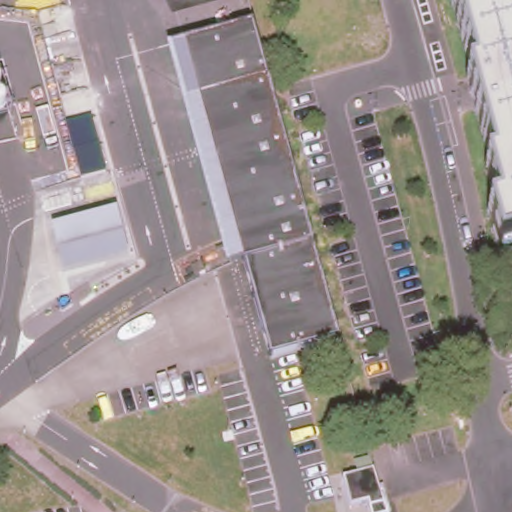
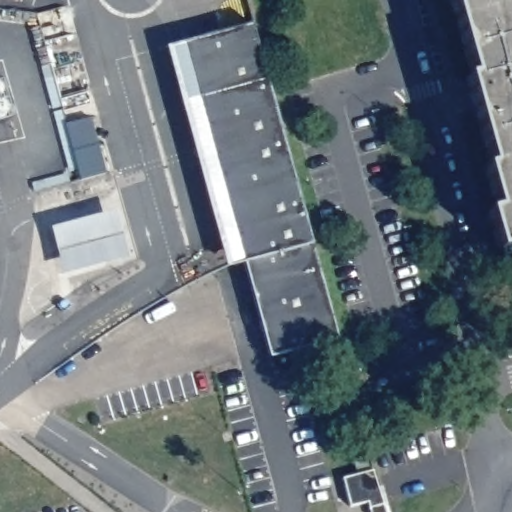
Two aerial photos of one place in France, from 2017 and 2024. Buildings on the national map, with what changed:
unchanged [(491,207),(499,205),(488,164),(492,163),(468,74),(473,73),(453,0),(512,0),(512,242),(501,245),(491,207)]
unchanged [(253,24),(269,80),(314,246),(339,337),(272,351),(251,262),(224,272),(166,47),(253,24)]
unchanged [(107,175),(81,180),(66,122),(91,119),(107,175)]
unchanged [(119,210),(133,260),(66,277),(53,226),(119,210)]
unchanged [(379,469),(392,512),(374,512),(372,505),(356,508),(348,481),(379,469)]

